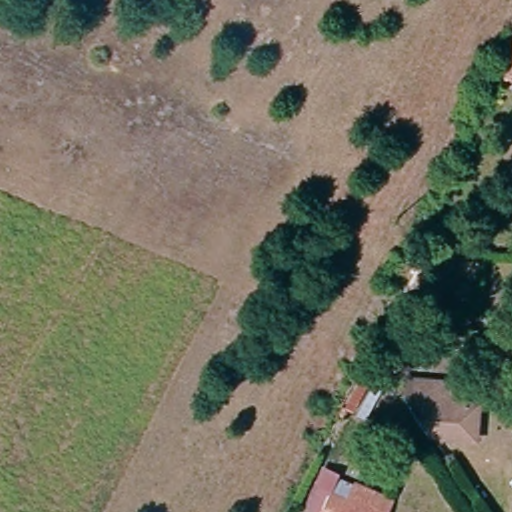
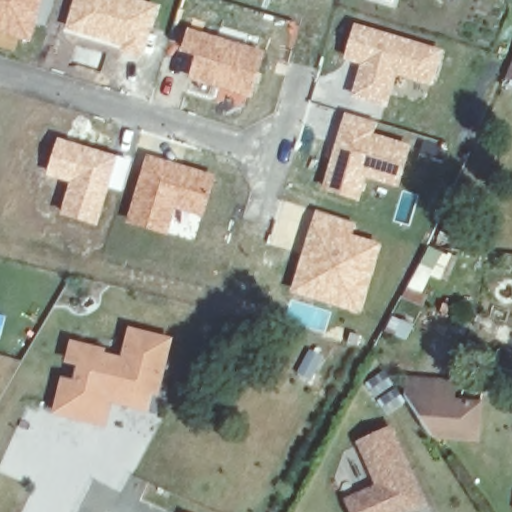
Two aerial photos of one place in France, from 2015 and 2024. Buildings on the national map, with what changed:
new [(27,40),(0,32),(0,0),(42,0),(27,40)]
new [(143,59),(120,53),(122,46),(66,30),(75,0),(139,0),(158,5),(143,59)]
new [(393,2),(386,0),(394,0),(393,2)]
new [(344,60),(355,24),(433,48),(423,83),(396,75),(385,105),(353,96),(362,65),(344,60)]
new [(252,99),(189,80),(196,57),(181,52),(189,29),(266,52),(252,99)]
unchanged [(512,40),(512,85),(499,75),(512,40)]
new [(345,113),(363,118),(362,123),(374,127),(371,139),(410,150),(400,186),(367,178),(360,200),(322,189),(345,113)]
new [(99,227),(60,216),(70,183),(47,176),(59,139),(119,157),(99,227)]
new [(205,218),(177,210),(169,236),(126,224),(146,155),(217,176),(205,218)]
new [(308,297),(301,260),(316,213),(355,225),(352,234),(381,243),(360,313),(308,297)]
new [(73,379),(76,366),(64,364),(69,339),(106,348),(106,352),(120,356),(129,326),(173,337),(159,396),(152,395),(149,411),(111,403),(106,426),(52,413),(61,376),(73,379)]
unchanged [(404,376),(455,381),(454,399),(481,402),(477,444),(430,439),(399,393),(402,393),(404,376)]
new [(350,512),(345,499),(373,487),(355,442),(392,426),(427,503),(408,512),(350,512)]
demolished [(333,486),(351,494),(357,482),(393,498),(387,512),(321,512),(331,492),(333,486)]

